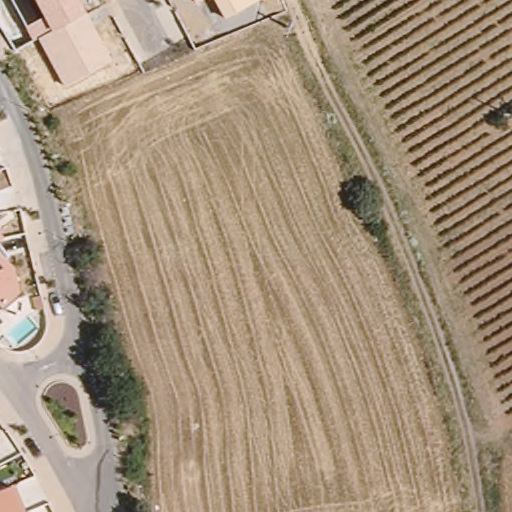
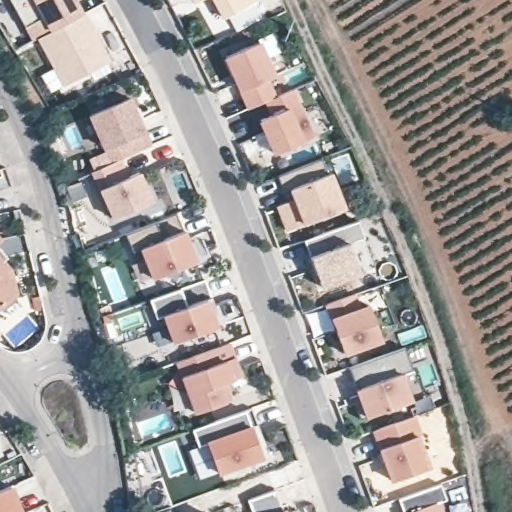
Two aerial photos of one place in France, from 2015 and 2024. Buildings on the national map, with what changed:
unchanged [(86,14),(110,61),(64,85),(38,38),(33,40),(12,0),(77,0),(86,14)]
unchanged [(194,4),(192,0),(201,0),(194,4)]
unchanged [(224,18),(213,0),(258,0),(224,18)]
new [(256,40),(271,75),(263,78),(271,96),(245,107),(222,55),(256,40)]
new [(318,136),(306,142),(275,154),(259,122),(274,115),(266,99),(295,88),(318,136)]
new [(147,129),(154,146),(124,159),(131,175),(141,171),(155,201),(114,220),(101,191),(92,172),(113,162),(108,146),(104,148),(88,113),(131,96),(147,129)]
new [(326,174),(331,172),(346,209),(306,224),(291,230),(279,204),(298,198),(316,191),(313,181),(288,192),(281,174),(321,159),(326,174)]
new [(173,212),(192,260),(151,278),(138,248),(129,252),(121,233),(173,212)]
new [(367,237),(352,243),(363,272),(323,288),(304,241),(359,220),(367,237)]
unchanged [(0,241),(0,235),(3,238),(0,241)]
unchanged [(18,293),(0,306),(0,252),(11,264),(18,293)]
new [(203,286),(213,311),(218,308),(223,322),(211,326),(214,334),(177,347),(166,321),(159,324),(152,305),(203,286)]
new [(351,294),(356,308),(365,304),(378,340),(341,353),(323,304),(351,294)]
new [(244,376),(226,383),(231,397),(228,401),(195,412),(183,377),(176,362),(232,343),(244,376)]
new [(344,367),(399,347),(408,368),(396,372),(406,400),(355,418),(349,403),(348,397),(354,394),(344,367)]
unchanged [(124,400),(119,371),(131,369),(137,398),(124,400)]
new [(253,408),(267,437),(264,441),(269,455),(210,477),(193,429),(248,410),(253,408)]
new [(423,432),(419,434),(429,467),(392,480),(381,448),(374,429),(417,414),(423,432)]
unchanged [(24,512),(0,512),(0,493),(14,486),(24,512)]
new [(441,488),(447,503),(439,506),(442,512),(403,512),(399,502),(441,488)]
new [(279,512),(247,512),(243,500),(271,489),(279,512)]
new [(283,512),(279,512),(283,511),(283,512)]

